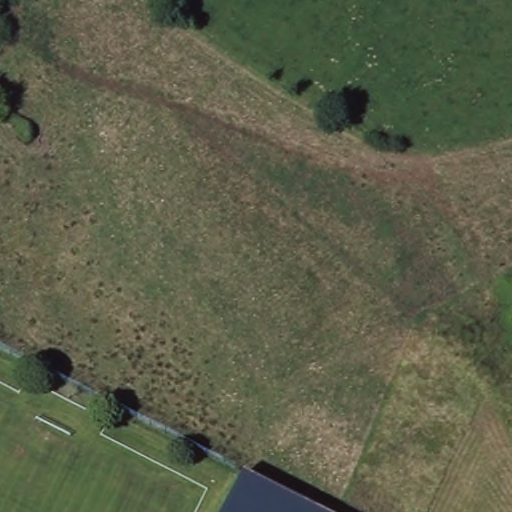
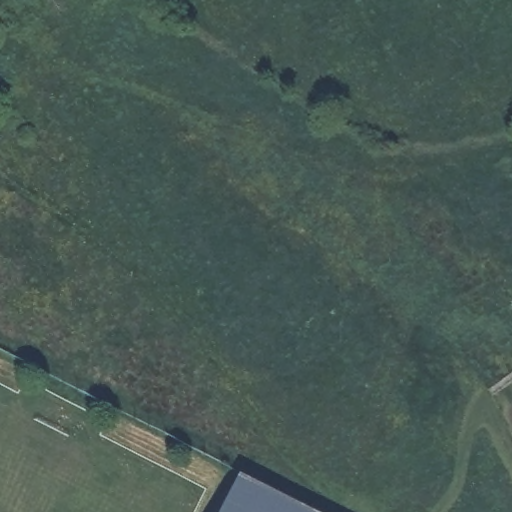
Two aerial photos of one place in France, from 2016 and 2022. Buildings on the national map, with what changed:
unchanged [(225,512),(243,477),(314,512),(225,512)]

